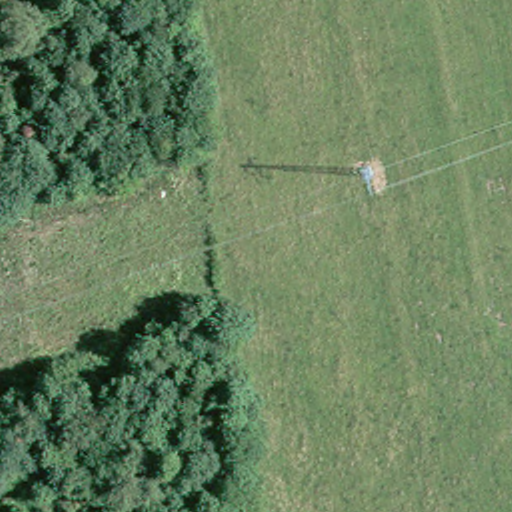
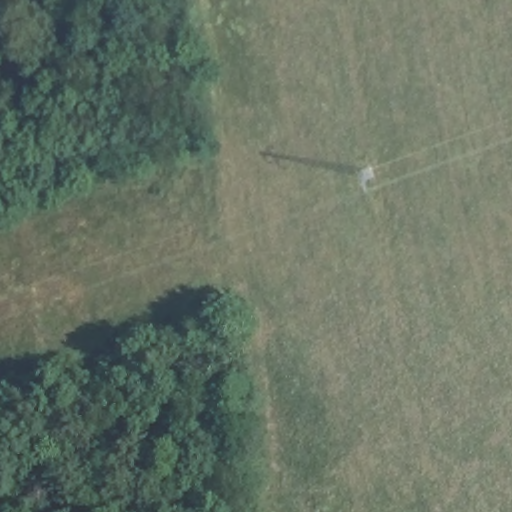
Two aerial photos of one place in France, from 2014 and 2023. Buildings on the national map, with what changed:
[]

